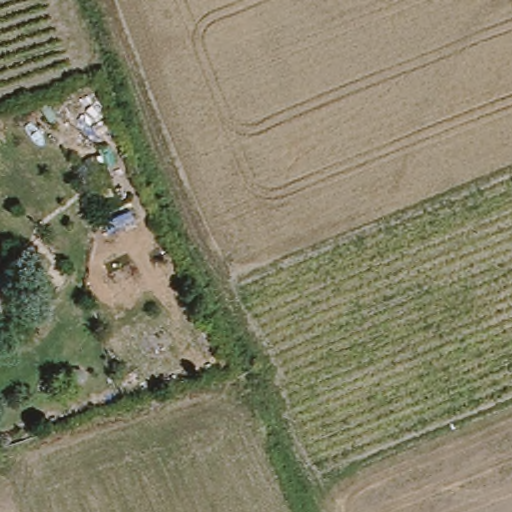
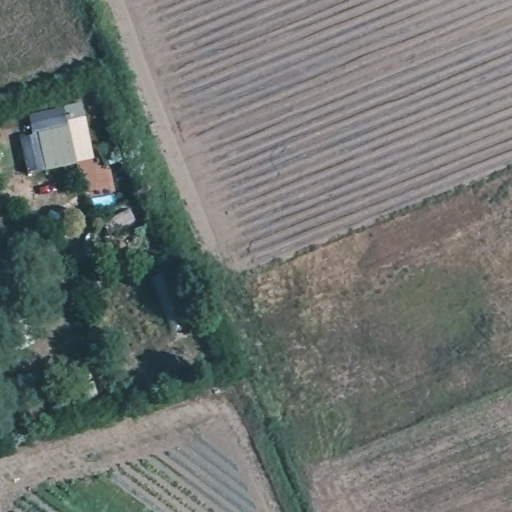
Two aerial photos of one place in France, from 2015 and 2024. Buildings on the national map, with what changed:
new [(28,115),(83,104),(93,160),(32,173),(31,168),(27,169),(20,138),(33,135),(28,115)]

